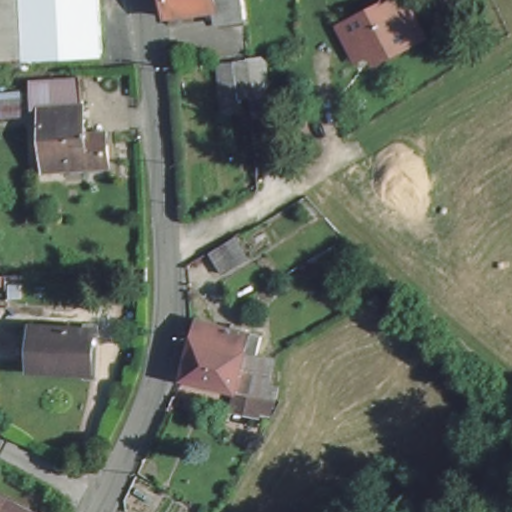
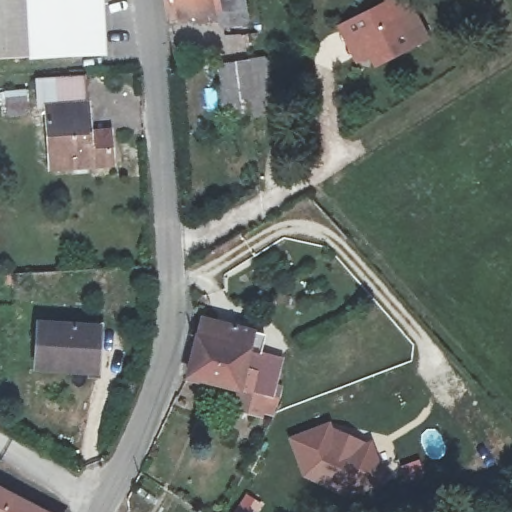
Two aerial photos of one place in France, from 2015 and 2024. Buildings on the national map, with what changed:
unchanged [(109,52),(0,62),(0,0),(104,0),(109,52)]
unchanged [(166,0),(219,0),(220,11),(168,20),(166,0)]
unchanged [(221,20),(220,11),(219,0),(245,0),(247,19),(221,20)]
unchanged [(350,22),(365,15),(393,0),(401,0),(419,35),(401,45),(396,37),(382,44),(368,51),(350,22)]
unchanged [(215,61),(256,52),(266,92),(243,95),(246,110),(223,115),(215,61)]
unchanged [(90,125),(108,125),(112,160),(50,167),(43,104),(36,104),(33,79),(85,74),(90,125)]
unchanged [(25,123),(3,125),(1,107),(23,106),(25,123)]
unchanged [(257,390),(250,388),(254,368),(221,360),(220,346),(196,340),(199,323),(261,337),(258,354),(273,358),(268,393),(257,390)]
unchanged [(99,372),(37,371),(35,327),(97,327),(99,372)]
unchanged [(254,413),(229,410),(232,387),(185,378),(196,340),(220,346),(221,360),(254,368),(250,388),(257,390),(254,413)]
new [(370,442),(384,482),(348,495),(303,477),(288,439),(330,422),(332,429),(364,443),(370,442)]
unchanged [(47,512),(0,512),(0,491),(47,512)]

